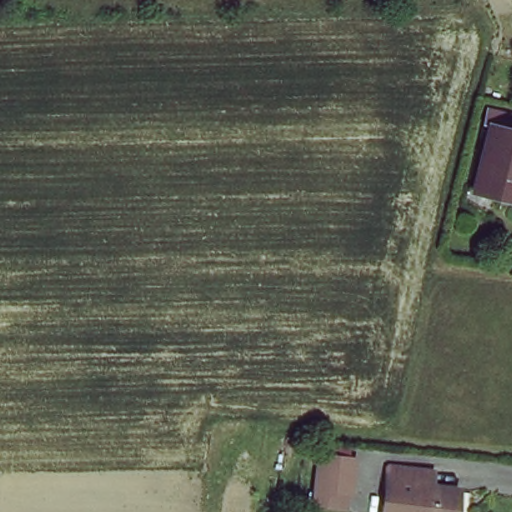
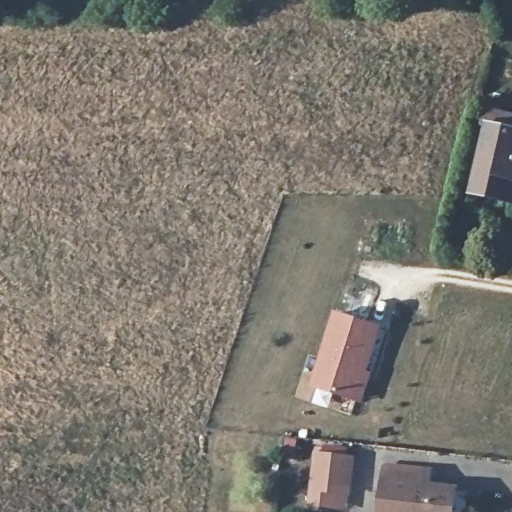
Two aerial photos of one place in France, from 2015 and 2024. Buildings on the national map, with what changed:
unchanged [(512,119),(512,203),(481,196),(498,131),(488,129),(491,114),(512,119)]
new [(363,403),(311,386),(335,310),(384,327),(369,371),(373,373),(363,403)]
unchanged [(316,447),(352,452),(348,486),(334,485),(334,501),(311,498),(316,447)]
unchanged [(462,491),(461,512),(391,512),(394,473),(434,476),(434,488),(462,491)]

